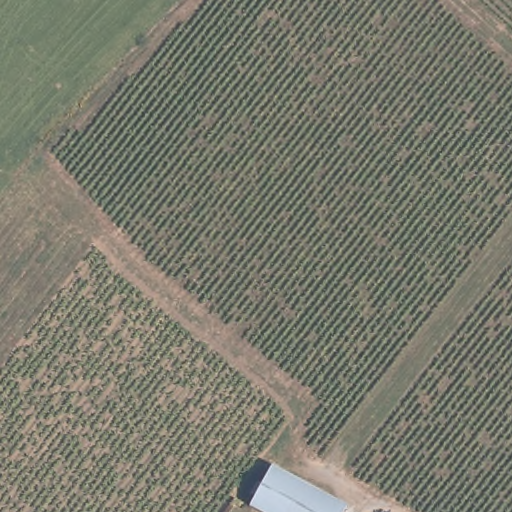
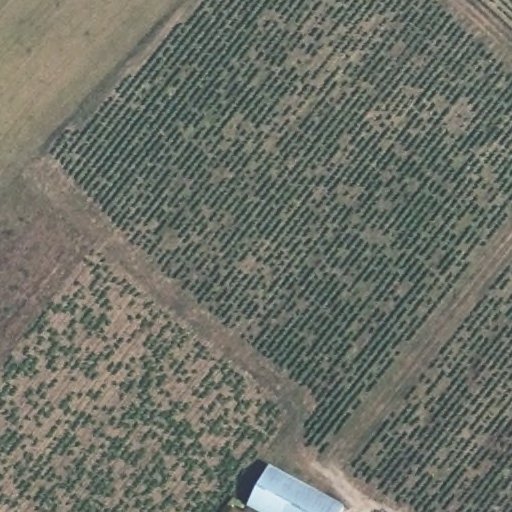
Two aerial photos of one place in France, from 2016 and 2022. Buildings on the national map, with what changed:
unchanged [(251,502),(274,470),(347,507),(344,512),(269,512),(251,502)]

